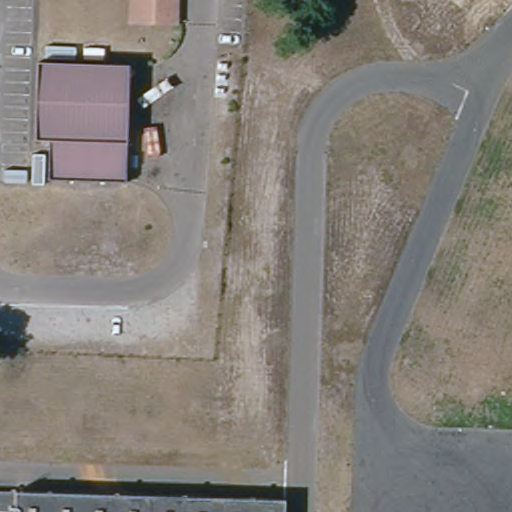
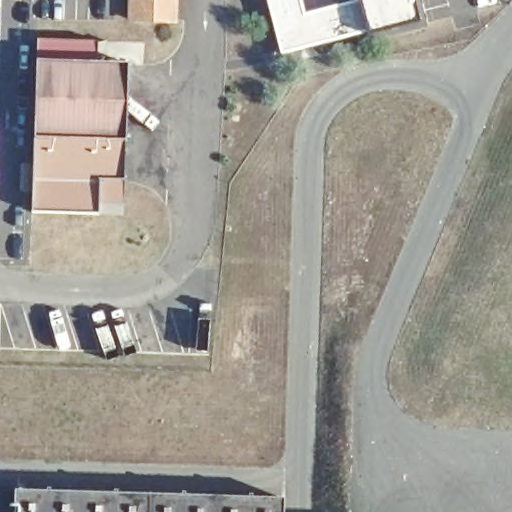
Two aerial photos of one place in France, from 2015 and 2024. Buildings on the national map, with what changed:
unchanged [(172,0),(172,24),(131,22),(132,0),(172,0)]
new [(364,32),(283,56),(268,0),(302,0),(306,15),(354,1),(354,0),(419,0),(425,24),(366,40),(364,32)]
new [(96,61),(37,60),(37,40),(96,42),(96,61)]
unchanged [(46,139),(32,139),(33,60),(125,62),(123,181),(45,179),(46,139)]
new [(100,205),(100,214),(32,212),(32,139),(46,139),(45,179),(123,181),(125,206),(100,205)]
unchanged [(281,500),(281,512),(0,512),(0,493),(281,500)]

